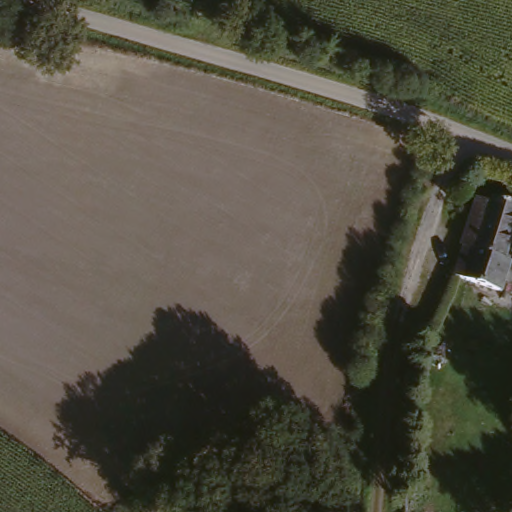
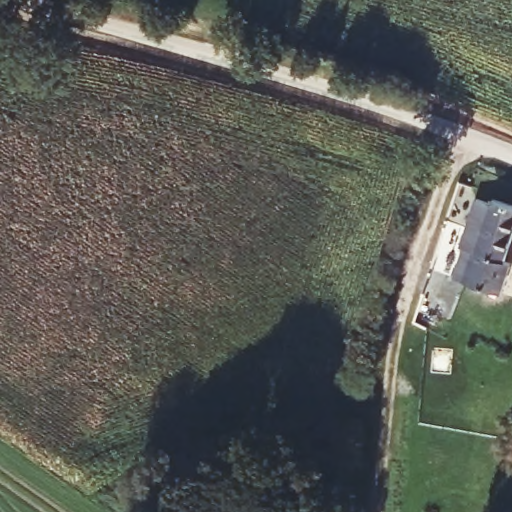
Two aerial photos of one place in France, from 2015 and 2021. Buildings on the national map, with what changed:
unchanged [(495,205),(497,198),(512,203),(512,243),(506,260),(512,261),(512,265),(503,291),(456,276),(463,251),(465,240),(478,198),(495,205)]

